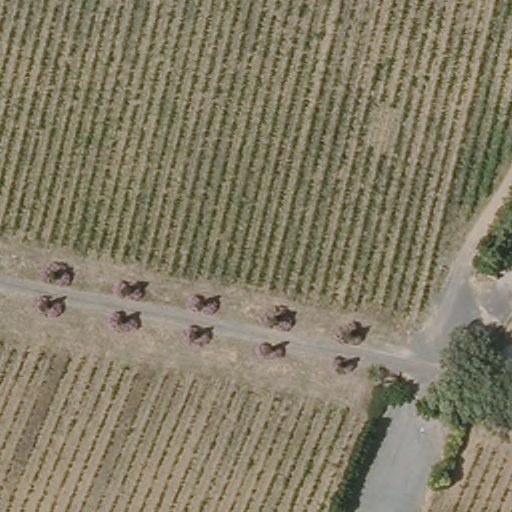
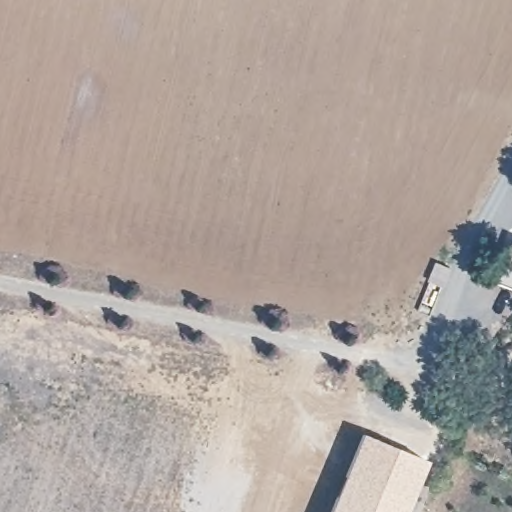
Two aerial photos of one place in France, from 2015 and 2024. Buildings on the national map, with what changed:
unchanged [(492,282),(480,278),(485,267),(497,272),(492,282)]
new [(427,460),(405,512),(327,512),(361,431),(427,460)]

